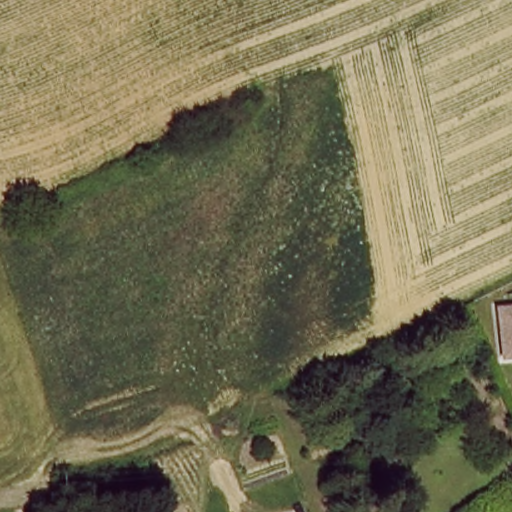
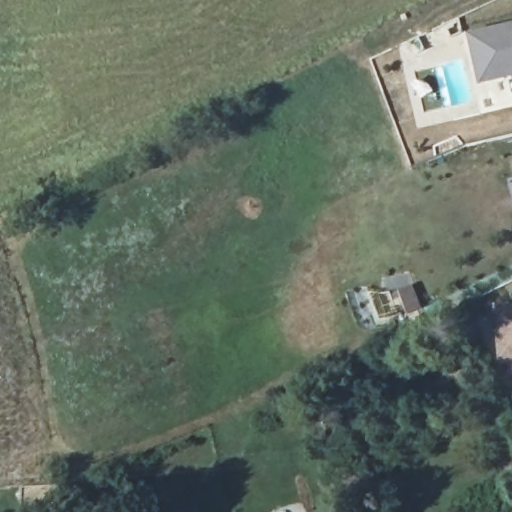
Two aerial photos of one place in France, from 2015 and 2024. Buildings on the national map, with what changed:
new [(512,24),(512,78),(480,84),(468,35),(512,24)]
unchanged [(512,311),(512,359),(500,360),(495,312),(512,311)]

